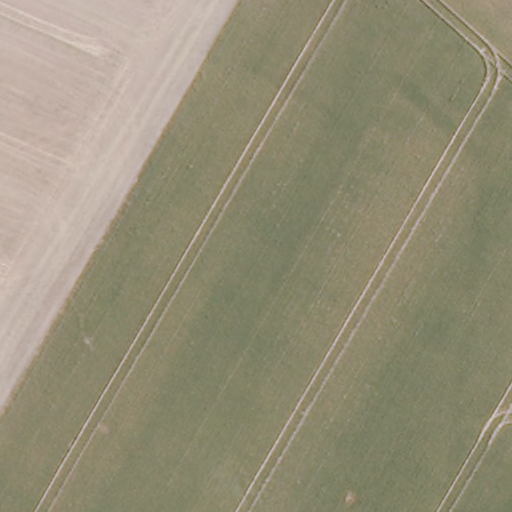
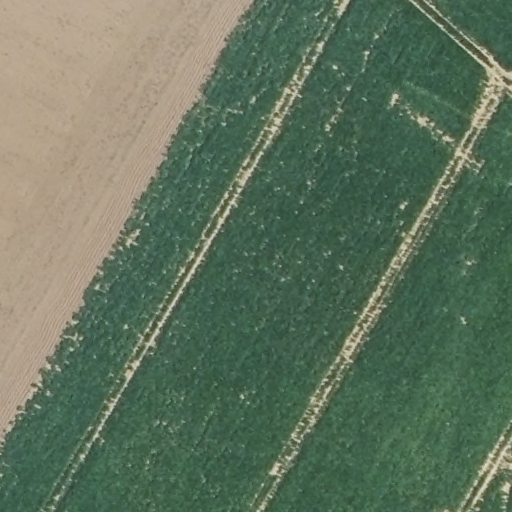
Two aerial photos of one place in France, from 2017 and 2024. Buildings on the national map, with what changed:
[]

